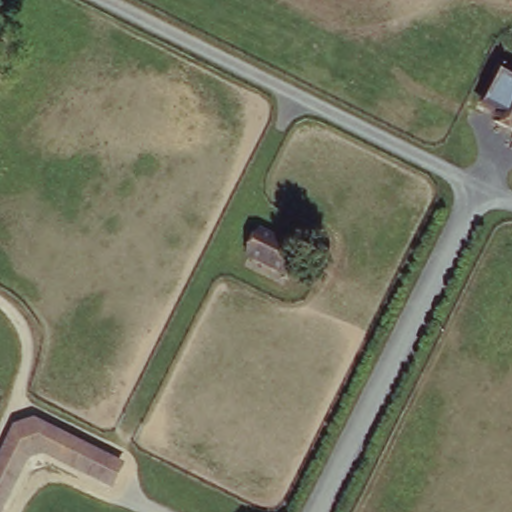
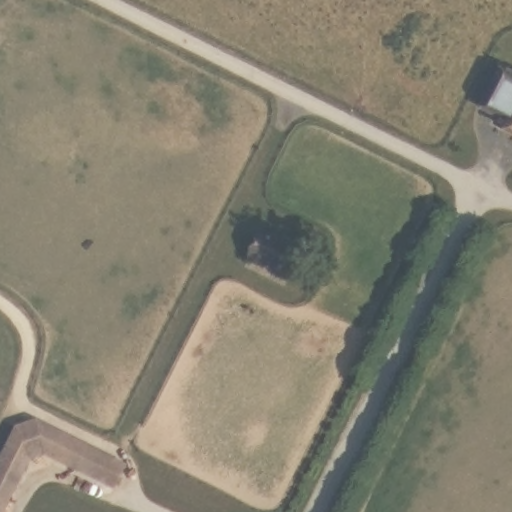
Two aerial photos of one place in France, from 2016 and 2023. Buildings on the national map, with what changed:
unchanged [(502,117),(484,109),(505,69),(512,72),(512,130),(499,124),(502,117)]
unchanged [(259,234),(298,253),(285,277),(246,258),(259,234)]
unchanged [(28,453),(0,509),(0,461),(18,425),(36,420),(121,463),(111,482),(42,448),(28,453)]

